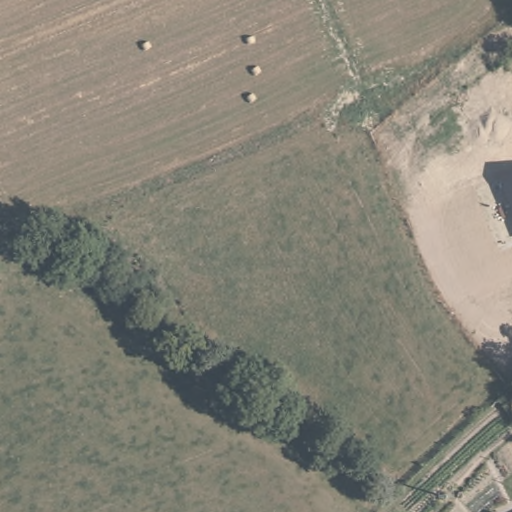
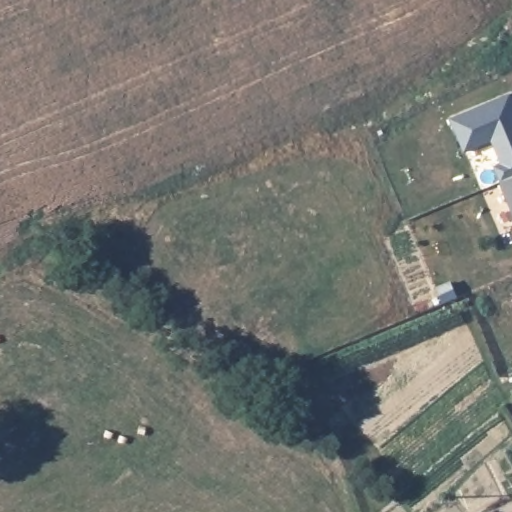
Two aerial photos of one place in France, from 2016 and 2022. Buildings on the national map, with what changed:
new [(512,99),(512,179),(501,183),(494,164),(500,163),(491,141),(464,152),(449,117),(509,93),(512,99)]
unchanged [(512,179),(512,210),(501,183),(512,179)]

